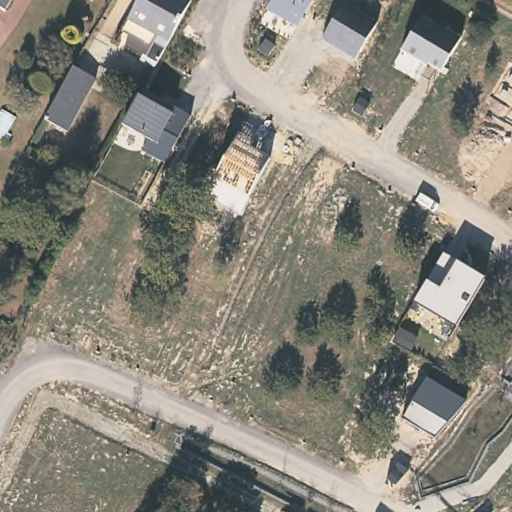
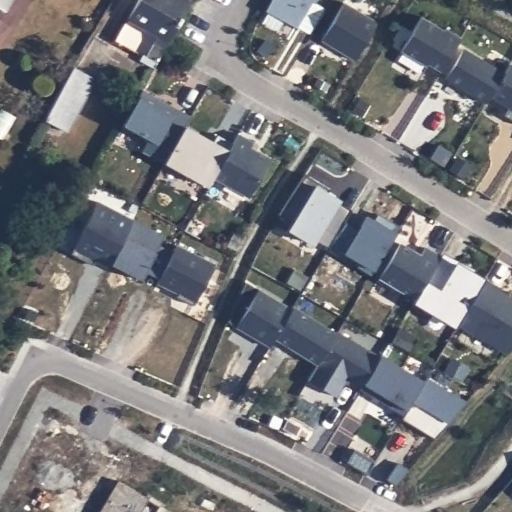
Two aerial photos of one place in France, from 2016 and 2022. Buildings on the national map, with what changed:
unchanged [(0,5),(0,0),(12,0),(7,9),(0,5)]
unchanged [(168,52),(156,46),(160,39),(131,22),(143,0),(185,0),(194,5),(168,52)]
unchanged [(313,2),(298,26),(266,11),(272,0),(317,0),(316,2),(313,2)]
unchanged [(377,21),(355,59),(324,41),(345,2),(377,21)]
unchanged [(444,30),(448,29),(460,36),(441,72),(428,64),(426,65),(404,51),(423,17),(444,30)]
new [(494,97),(488,103),(446,78),(465,47),(508,74),(494,97)]
unchanged [(507,116),(511,108),(494,97),(512,66),(512,119),(507,116)]
unchanged [(103,83),(100,90),(75,135),(53,124),(66,100),(75,81),(81,70),(103,83)]
unchanged [(166,162),(144,153),(151,141),(124,125),(139,96),(142,89),(190,115),(166,162)]
new [(216,179),(210,186),(166,162),(185,125),(231,150),(216,179)]
unchanged [(216,179),(240,133),(255,141),(252,147),(271,157),(249,198),(216,179)]
unchanged [(316,239),(313,242),(292,228),(294,222),(280,215),(306,174),(330,190),(329,194),(339,201),(338,204),(352,210),(329,248),(316,239)]
new [(163,279),(146,274),(142,280),(111,263),(110,268),(96,260),(94,265),(71,253),(99,201),(167,235),(161,246),(176,253),(163,279)]
new [(345,221),(358,230),(366,215),(397,232),(373,270),(371,275),(329,248),(345,221)]
new [(428,280),(417,299),(381,277),(401,242),(422,254),(427,247),(442,255),(428,280)]
new [(180,246),(217,265),(197,306),(179,297),(181,294),(160,284),(180,246)]
unchanged [(486,278),(456,328),(414,303),(428,280),(444,252),(457,261),(486,278)]
new [(512,295),(512,346),(506,354),(456,328),(486,278),(512,295)]
new [(259,291),(292,311),(268,349),(235,328),(259,291)]
new [(336,333),(338,330),(382,355),(425,380),(404,415),(361,390),(362,387),(347,378),(336,396),(309,380),(319,364),(275,338),(292,311),(336,333)]
unchanged [(467,402),(435,438),(402,419),(427,378),(467,402)]
new [(120,481),(173,512),(99,512),(120,481)]

